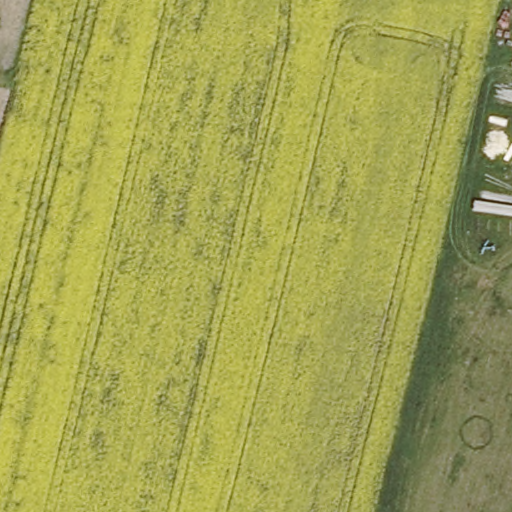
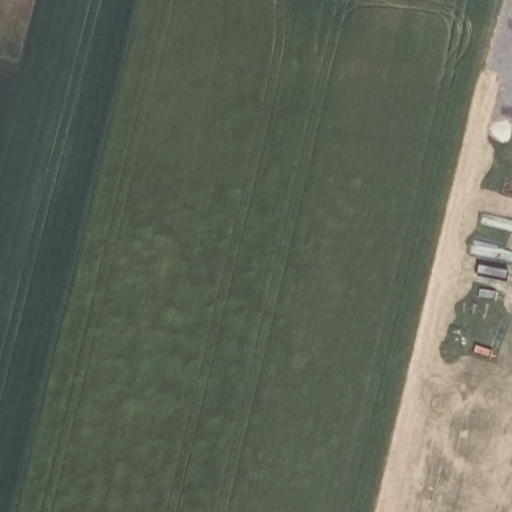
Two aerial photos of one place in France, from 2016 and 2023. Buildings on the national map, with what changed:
[]

